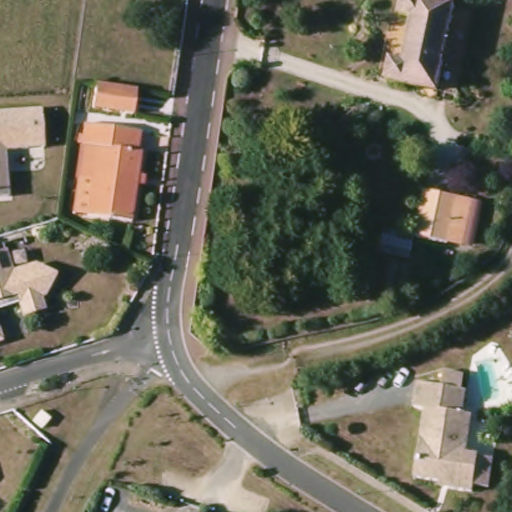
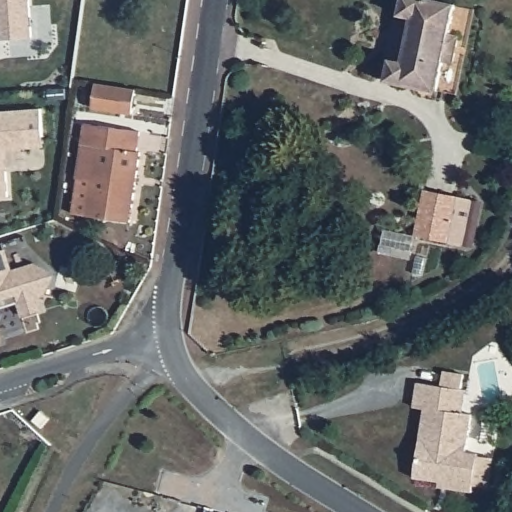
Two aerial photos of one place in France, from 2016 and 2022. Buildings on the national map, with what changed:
new [(0,0),(29,0),(32,39),(1,41),(0,33),(0,0)]
unchanged [(448,41),(458,44),(452,69),(442,67),(435,98),(386,87),(390,66),(402,69),(412,23),(400,20),(405,0),(454,11),(448,41)]
unchanged [(134,116),(93,110),(96,86),(137,92),(134,116)]
unchanged [(5,148),(8,195),(0,196),(0,110),(41,108),(44,146),(5,148)]
unchanged [(140,134),(137,151),(141,152),(131,223),(86,217),(91,182),(77,180),(85,127),(140,134)]
unchanged [(425,197),(457,204),(448,249),(415,242),(425,197)]
unchanged [(485,208),(481,226),(467,254),(448,249),(457,204),(485,208)]
unchanged [(393,254),(391,261),(380,258),(384,236),(415,242),(412,258),(393,254)]
unchanged [(13,275),(34,268),(46,280),(43,297),(40,298),(44,312),(25,318),(20,304),(10,307),(0,302),(0,254),(6,252),(13,275)]
unchanged [(238,300),(234,331),(223,330),(226,300),(238,300)]
unchanged [(440,478),(415,475),(425,406),(415,405),(418,380),(426,381),(427,375),(440,376),(441,368),(468,372),(465,387),(462,410),(471,411),(466,450),(478,451),(478,453),(493,456),(488,484),(473,482),(472,488),(449,485),(440,483),(440,478)]

